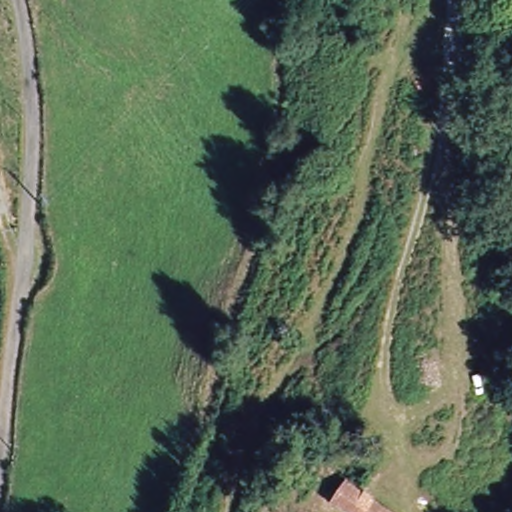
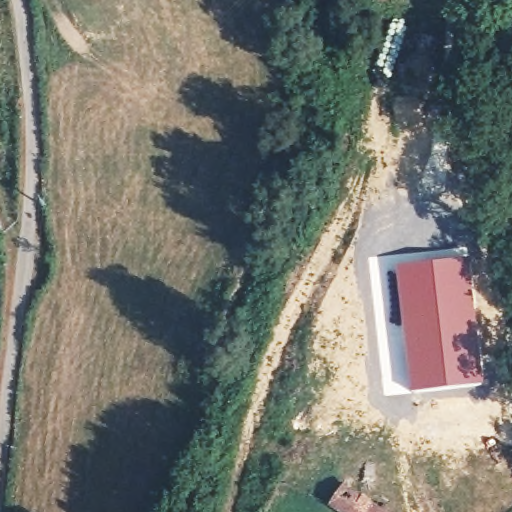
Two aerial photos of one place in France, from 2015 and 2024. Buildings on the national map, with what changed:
new [(397,268),(470,258),(484,384),(411,392),(397,268)]
unchanged [(344,487),(386,512),(330,512),(344,487)]

